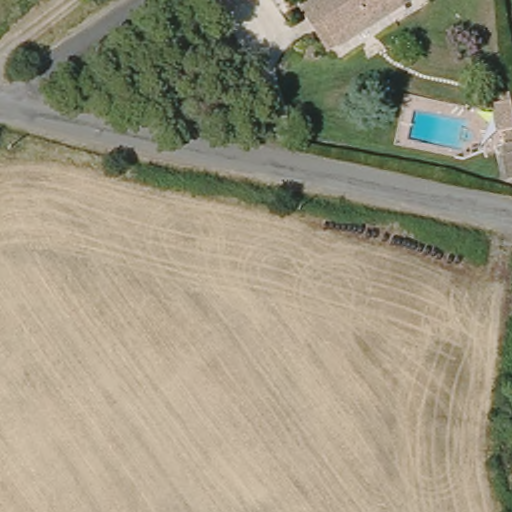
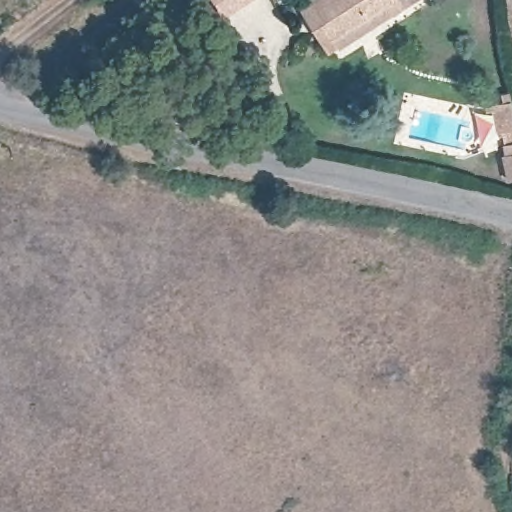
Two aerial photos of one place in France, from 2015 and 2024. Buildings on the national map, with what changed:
new [(218,0),(252,0),(228,16),(218,0)]
unchanged [(304,10),(306,7),(300,0),(401,0),(333,50),(304,10)]
unchanged [(505,125),(487,126),(486,117),(496,117),(495,110),(503,109),(505,125)]
unchanged [(512,193),(494,195),(492,170),(495,169),(492,146),(507,145),(512,193)]

